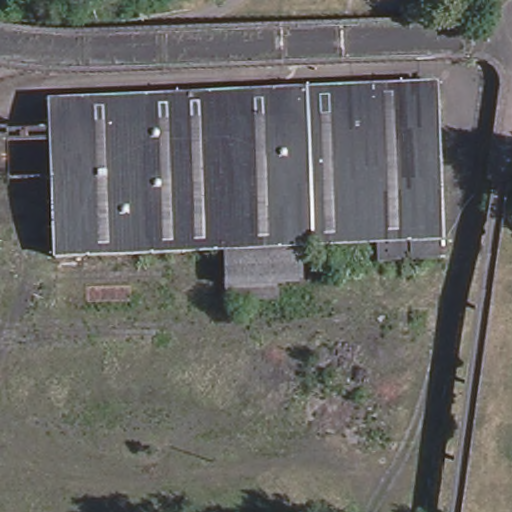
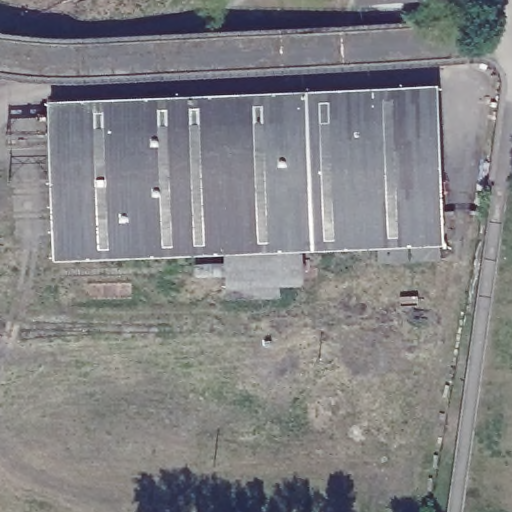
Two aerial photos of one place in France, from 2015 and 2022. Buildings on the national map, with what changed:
unchanged [(355,2),(354,0),(401,0),(355,2)]
unchanged [(51,261),(48,100),(440,79),(440,246),(305,252),(218,255),(51,261)]
unchanged [(305,252),(306,281),(221,281),(218,255),(305,252)]

